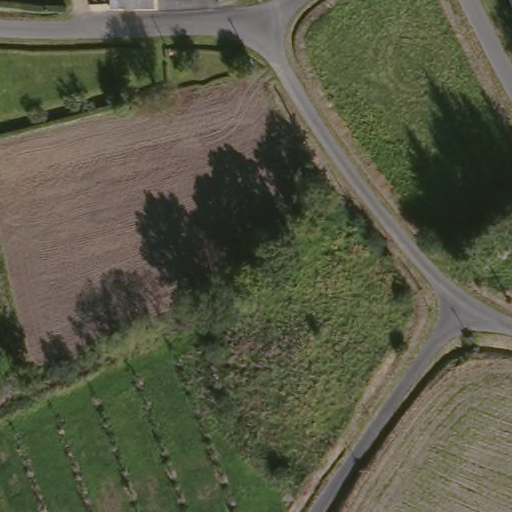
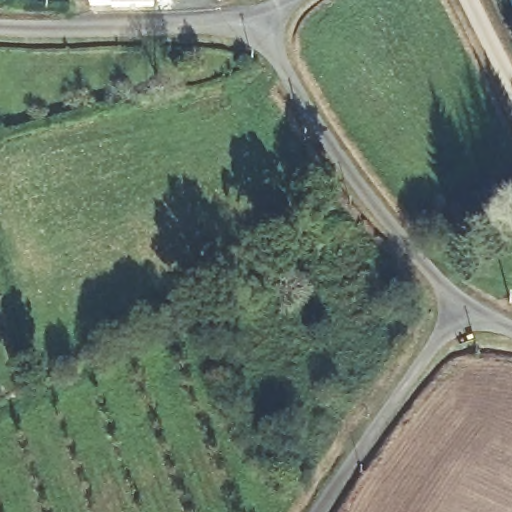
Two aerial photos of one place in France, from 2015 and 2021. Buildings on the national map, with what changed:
unchanged [(156,8),(120,8),(117,8),(116,6),(96,6),(96,0),(158,0),(158,8),(156,8)]

